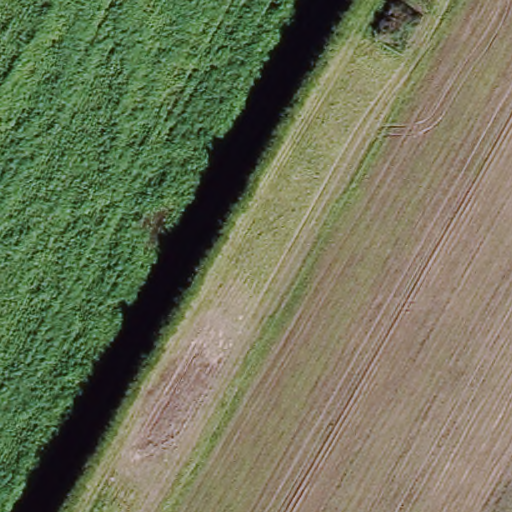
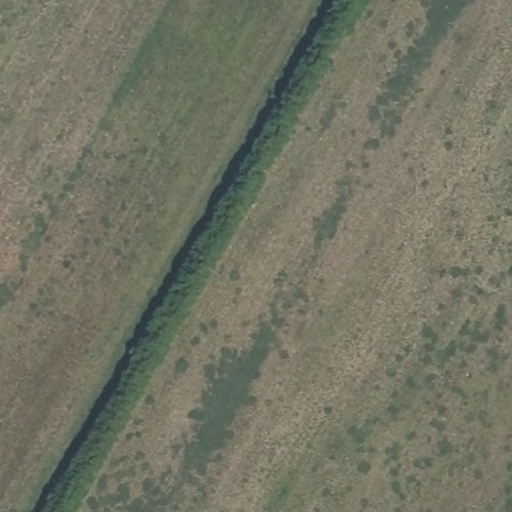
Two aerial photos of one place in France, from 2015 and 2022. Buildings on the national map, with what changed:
[]

